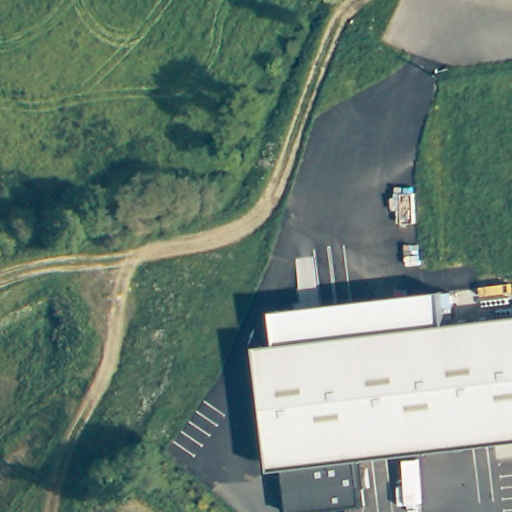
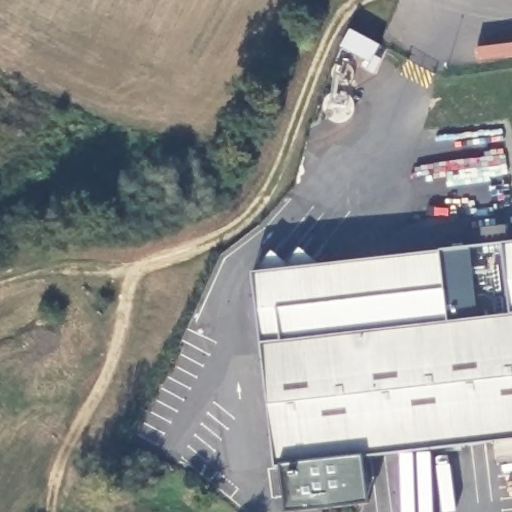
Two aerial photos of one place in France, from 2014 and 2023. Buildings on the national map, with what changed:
new [(512,316),(509,316),(501,244),(512,243),(512,316)]
new [(251,273),(470,250),(478,302),(445,306),(443,290),(275,309),(279,341),(259,344),(251,273)]
unchanged [(447,323),(512,316),(512,441),(364,457),(367,487),(361,487),(363,505),(322,510),(322,512),(289,512),(285,468),(274,469),(259,344),(279,341),(275,309),(443,290),(447,323)]

